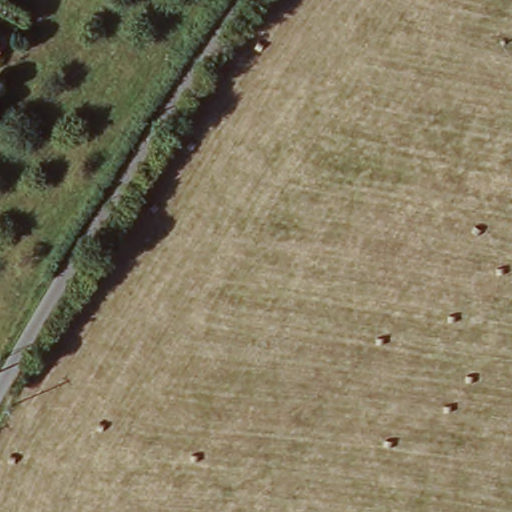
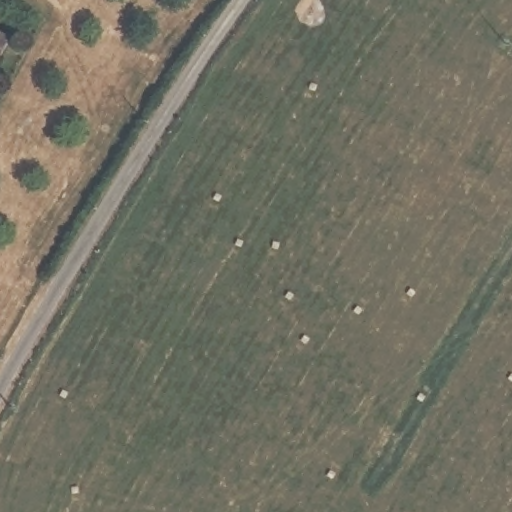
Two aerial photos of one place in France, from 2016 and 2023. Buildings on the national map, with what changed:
unchanged [(13,42),(0,63),(0,34),(13,42)]

